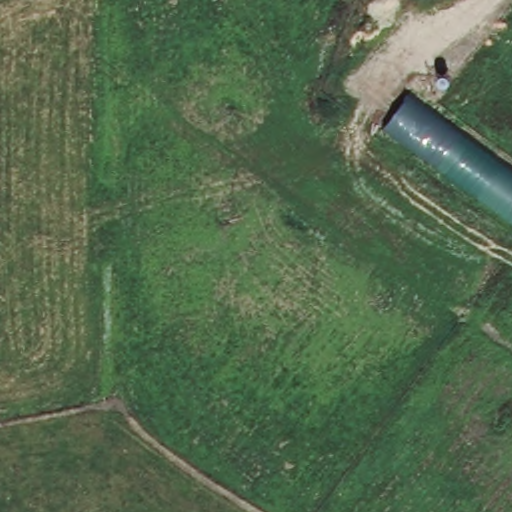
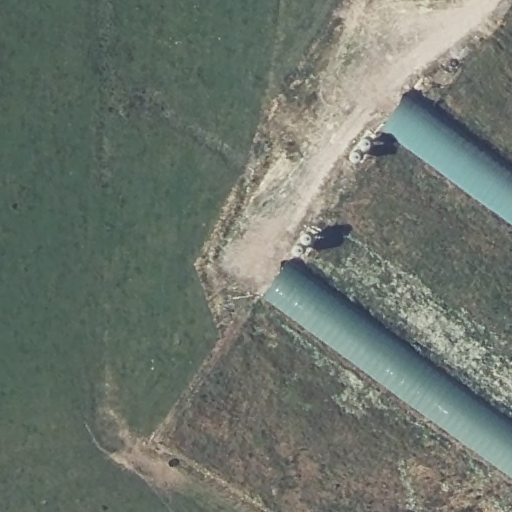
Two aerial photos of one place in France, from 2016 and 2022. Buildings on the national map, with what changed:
unchanged [(512,165),(512,224),(386,132),(413,94),(512,165)]
new [(512,474),(265,296),(291,260),(512,421),(512,474)]

